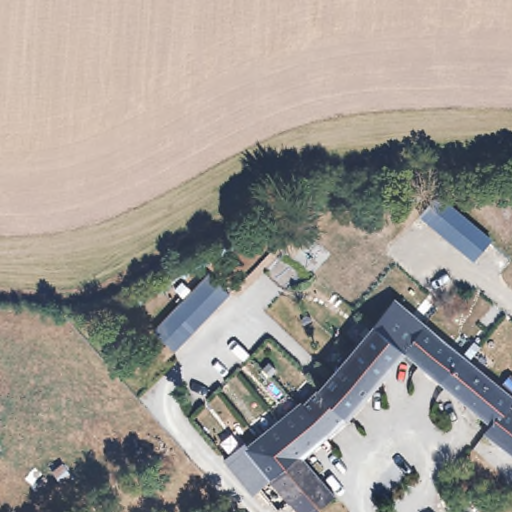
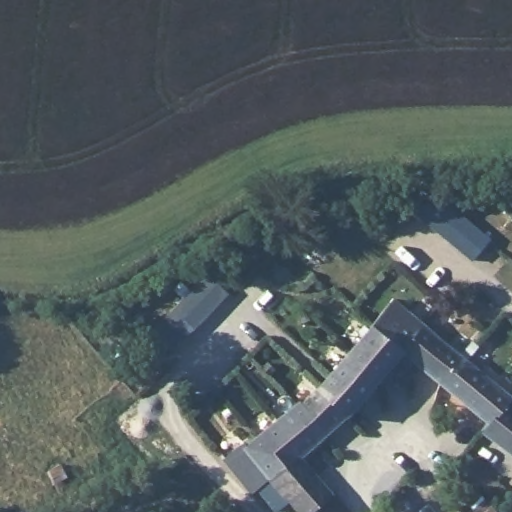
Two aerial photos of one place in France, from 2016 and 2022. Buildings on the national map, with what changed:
unchanged [(417,215),(433,195),(488,240),(471,262),(417,215)]
unchanged [(170,354),(149,334),(203,273),(227,293),(170,354)]
unchanged [(507,407),(512,411),(512,456),(485,433),(490,428),(401,352),(379,378),(351,354),(372,328),(393,303),(512,403),(507,407)]
unchanged [(379,378),(360,400),(332,378),(351,354),(379,378)]
unchanged [(316,394),(317,396),(332,378),(360,400),(347,417),(336,426),(312,444),(302,455),(278,424),(316,394)]
unchanged [(250,446),(246,442),(257,434),(260,439),(278,424),(302,455),(267,484),(252,496),(225,466),(234,459),(250,446)]
unchanged [(302,455),(312,467),(333,493),(331,496),(309,512),(301,500),(287,510),(267,484),(302,455)]
unchanged [(490,512),(468,512),(462,508),(471,498),(490,512)]
unchanged [(428,507),(433,512),(423,512),(428,507)]

